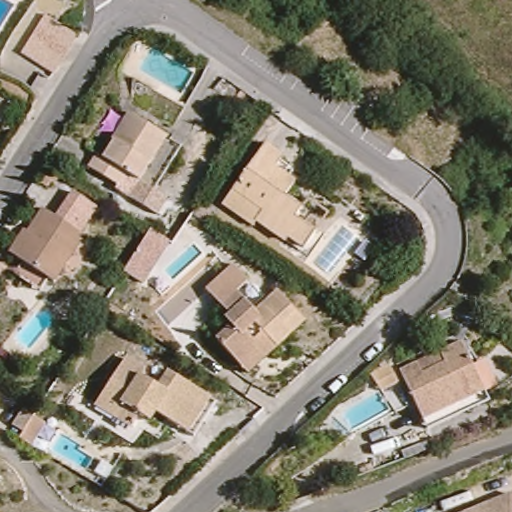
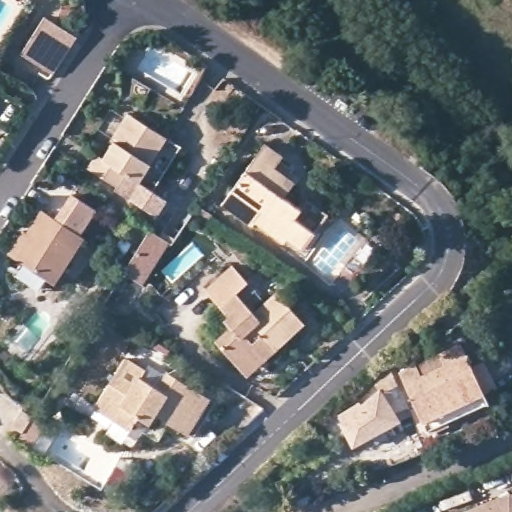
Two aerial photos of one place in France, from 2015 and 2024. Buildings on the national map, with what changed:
unchanged [(21,55),(45,17),(77,37),(53,75),(21,55)]
unchanged [(169,200),(157,218),(119,192),(89,174),(97,160),(103,164),(114,146),(113,145),(129,119),(133,121),(167,142),(139,187),(142,183),(169,200)]
unchanged [(283,158),(275,169),(295,183),(285,198),(301,210),(295,219),(315,233),(304,249),(289,238),(286,242),(257,222),(254,226),(223,204),(265,145),(283,158)]
unchanged [(45,173),(57,180),(53,185),(50,183),(47,189),(39,184),(45,173)]
unchanged [(30,238),(32,240),(48,216),(55,220),(61,224),(76,201),(100,216),(84,239),(88,242),(58,288),(23,264),(16,260),(30,238)]
unchanged [(197,206),(212,215),(206,224),(192,215),(197,206)]
unchanged [(146,288),(123,273),(150,229),(173,244),(146,288)]
unchanged [(376,263),(385,256),(390,263),(382,270),(376,263)]
unchanged [(241,372),(216,345),(231,331),(225,325),(230,321),(206,295),(233,271),(248,287),(236,298),(254,318),(277,297),(298,320),(305,328),(291,341),(277,354),(249,380),(241,372)]
unchanged [(400,372),(416,364),(440,353),(461,343),(473,369),(481,366),(485,376),(478,379),(480,384),(489,402),(427,430),(423,421),(400,372)]
unchanged [(116,418),(96,406),(125,360),(145,372),(141,377),(159,388),(169,373),(216,402),(194,438),(154,413),(148,422),(140,416),(132,428),(116,418)]
new [(340,415),(359,403),(361,405),(380,390),(370,374),(389,366),(398,384),(409,408),(396,415),(400,422),(355,446),(341,425),(343,423),(340,415)]
demolished [(398,384),(409,408),(396,415),(381,392),(398,384)]
unchanged [(34,417),(45,424),(31,446),(19,439),(34,417)]
unchanged [(483,512),(512,500),(512,512),(483,512)]

